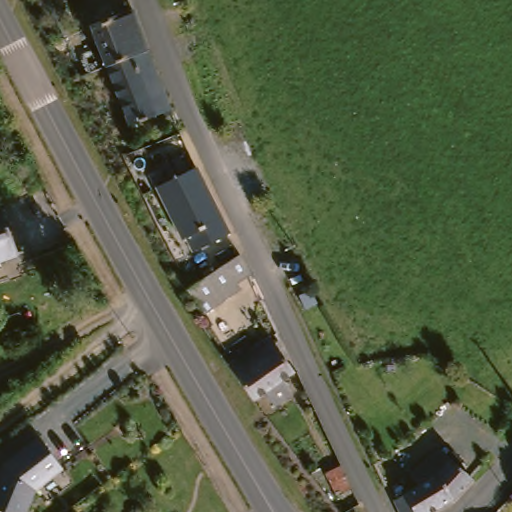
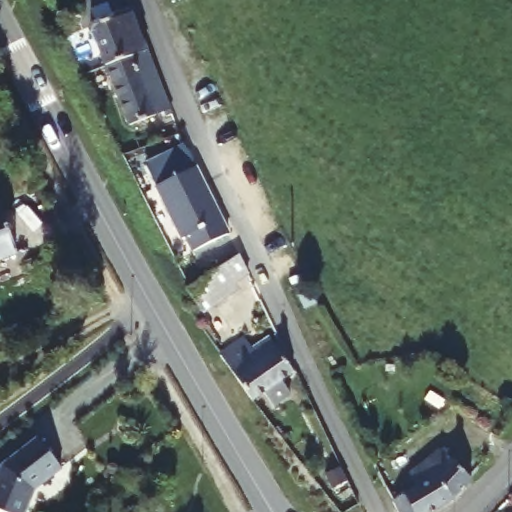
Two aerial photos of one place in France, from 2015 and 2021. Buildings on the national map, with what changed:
unchanged [(84,24),(91,22),(85,7),(103,0),(107,0),(114,17),(126,13),(139,52),(130,56),(101,65),(84,24)]
unchanged [(169,111),(128,126),(101,65),(130,56),(139,84),(158,79),(169,111)]
unchanged [(156,182),(196,164),(221,218),(227,232),(191,249),(184,234),(180,236),(156,182)]
unchanged [(0,253),(0,210),(15,247),(0,253)]
unchanged [(241,258),(249,278),(229,290),(231,293),(204,310),(189,286),(241,258)]
unchanged [(228,368),(266,332),(271,337),(267,347),(288,371),(278,380),(287,390),(271,405),(262,396),(253,405),(228,368)]
unchanged [(22,485),(12,512),(1,512),(0,512),(0,453),(24,433),(48,463),(22,485)]
unchanged [(444,446),(476,475),(458,493),(428,512),(408,512),(399,495),(422,480),(413,467),(435,452),(444,446)]

